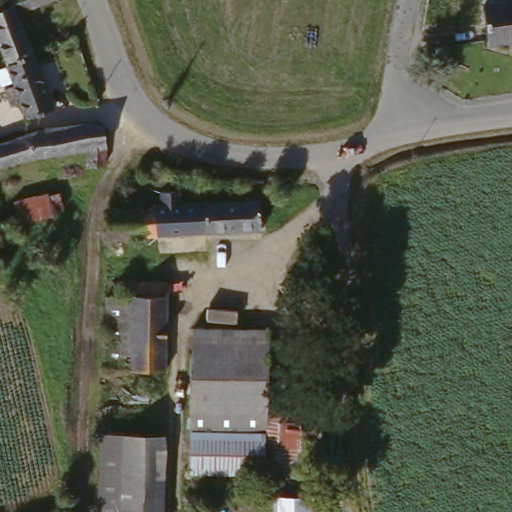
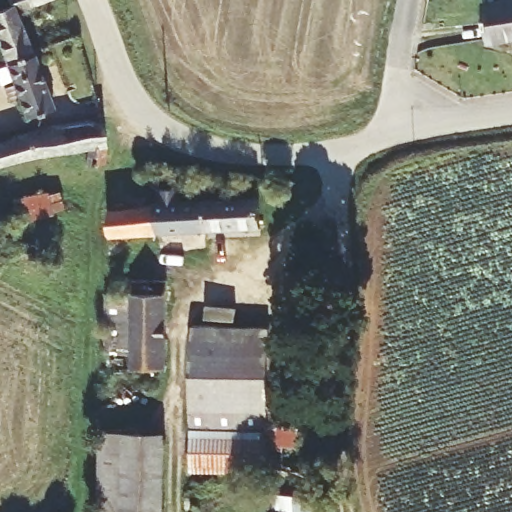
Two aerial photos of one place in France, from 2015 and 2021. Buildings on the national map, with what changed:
unchanged [(35,56),(17,64),(0,28),(0,16),(14,9),(10,0),(48,0),(17,16),(33,50),(35,56)]
unchanged [(486,46),(485,6),(512,5),(512,45),(486,46)]
unchanged [(19,82),(0,90),(0,71),(17,64),(35,56),(55,97),(33,107),(19,82)]
unchanged [(48,132),(99,129),(99,155),(97,156),(96,173),(83,175),(81,160),(58,160),(23,167),(0,175),(0,144),(18,138),(48,132)]
unchanged [(59,221),(12,228),(6,208),(53,196),(59,221)]
unchanged [(202,244),(202,239),(152,235),(151,239),(101,236),(105,210),(134,212),(135,196),(156,197),(156,207),(252,215),(250,247),(202,244)]
unchanged [(0,230),(9,227),(18,258),(0,264),(0,230)]
unchanged [(124,301),(124,286),(162,286),(161,295),(168,296),(163,377),(95,375),(94,300),(124,301)]
unchanged [(266,411),(322,410),(315,498),(320,498),(318,512),(264,512),(265,486),(185,482),(185,432),(182,432),(188,332),(268,335),(266,411)]
unchanged [(162,512),(92,512),(93,437),(164,437),(162,512)]

